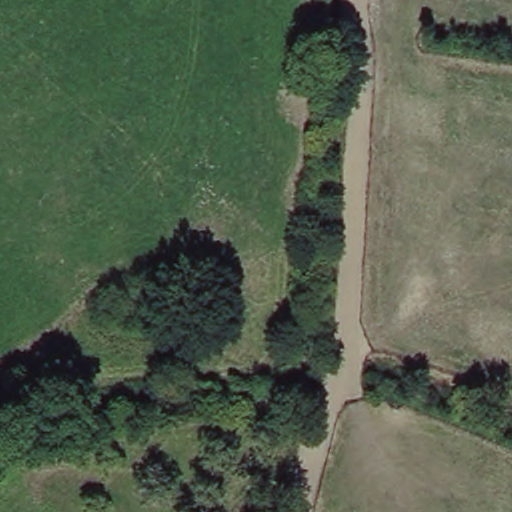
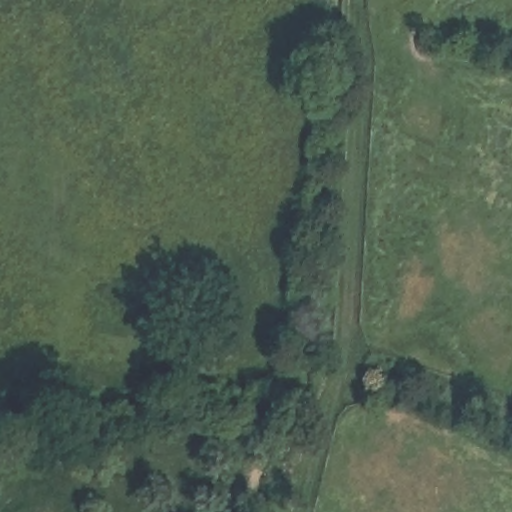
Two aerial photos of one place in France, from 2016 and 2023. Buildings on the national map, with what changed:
[]

